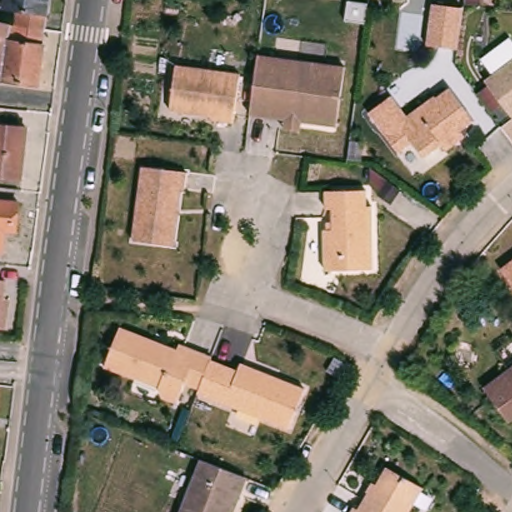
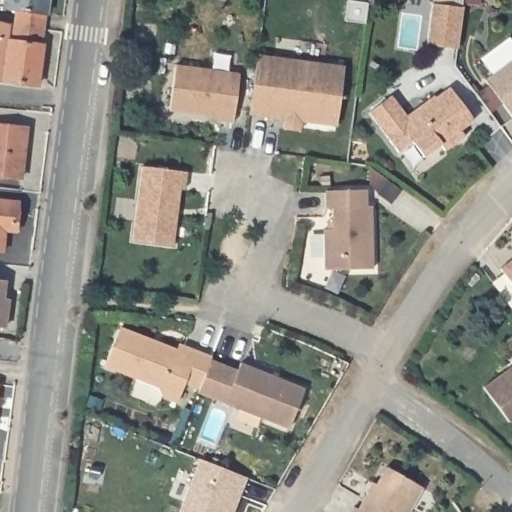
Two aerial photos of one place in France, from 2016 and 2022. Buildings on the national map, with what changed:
unchanged [(45,30),(39,29),(14,26),(14,24),(16,9),(5,6),(6,0),(50,0),(45,30)]
unchanged [(432,4),(462,8),(457,49),(425,46),(432,4)]
unchanged [(39,86),(0,81),(0,20),(14,24),(14,26),(39,29),(45,30),(39,86)]
unchanged [(283,130),(285,120),(249,115),(256,55),(343,67),(335,126),(300,122),(298,131),(283,130)]
unchanged [(512,59),(512,106),(489,76),(512,59)]
unchanged [(221,112),(174,106),(180,61),(244,69),(237,118),(220,115),(221,112)]
unchanged [(478,115),(464,125),(468,131),(449,146),(445,140),(428,152),(416,137),(403,147),(373,107),(395,91),(411,112),(439,91),(440,93),(453,83),(478,115)]
unchanged [(32,125),(27,174),(0,171),(0,121),(32,125)]
unchanged [(189,185),(185,185),(177,241),(137,236),(146,161),(191,167),(189,185)]
unchanged [(371,201),(376,201),(377,264),(328,265),(327,225),(331,225),(331,217),(336,217),(336,203),(330,204),(330,186),(371,185),(371,201)]
unchanged [(19,206),(15,235),(5,234),(3,254),(0,253),(0,204),(19,206)]
unchanged [(512,259),(512,275),(505,265),(512,259)]
unchanged [(7,277),(4,304),(9,304),(6,325),(0,324),(0,276),(7,277)]
unchanged [(124,327),(181,350),(184,344),(216,357),(204,389),(189,384),(181,403),(167,398),(162,387),(109,367),(124,327)]
unchanged [(296,428),(234,404),(237,395),(224,390),(234,367),(246,372),(250,363),(312,388),(296,428)]
unchanged [(512,415),(488,383),(512,365),(512,415)]
unchanged [(4,381),(0,410),(0,381),(4,381)]
unchanged [(230,512),(182,512),(205,455),(251,473),(245,490),(236,511),(231,509),(230,512)]
unchanged [(362,505),(373,486),(372,485),(376,478),(380,480),(390,462),(426,483),(410,512),(352,512),(358,502),(362,505)]

